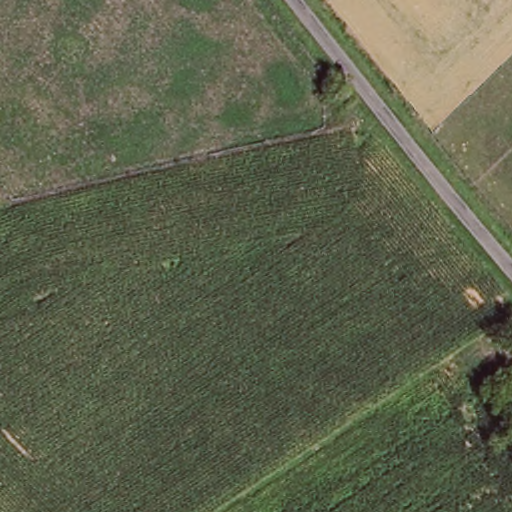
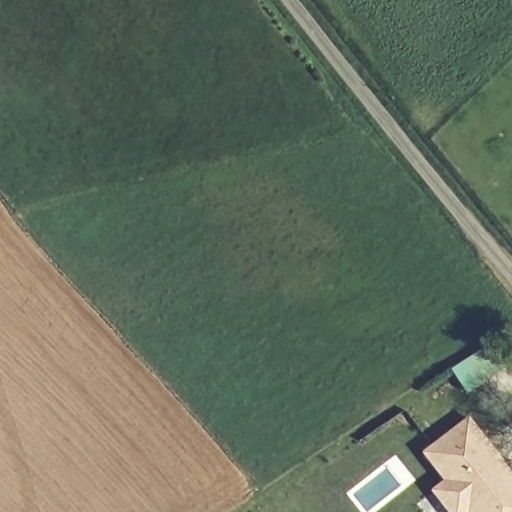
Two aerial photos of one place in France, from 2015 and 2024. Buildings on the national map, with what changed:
new [(467,393),(451,369),(490,344),(505,369),(467,393)]
new [(512,512),(449,512),(432,491),(445,480),(421,452),(470,415),(512,470),(512,512)]

